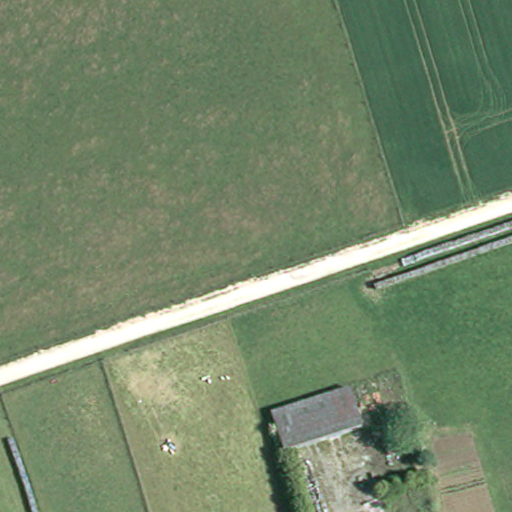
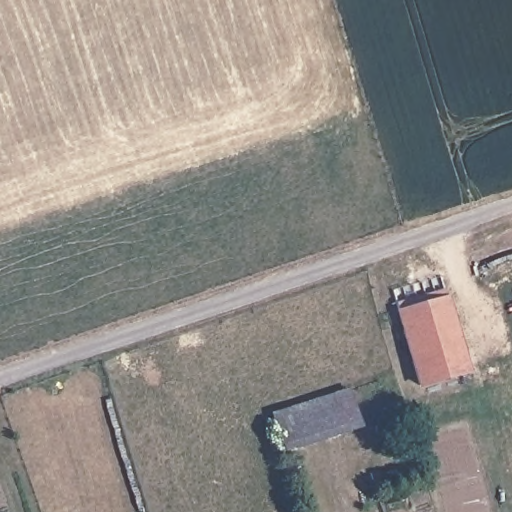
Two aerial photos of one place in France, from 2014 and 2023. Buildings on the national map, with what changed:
new [(470,373),(417,389),(396,311),(449,295),(470,373)]
unchanged [(291,456),(278,420),(353,394),(365,431),(291,456)]

